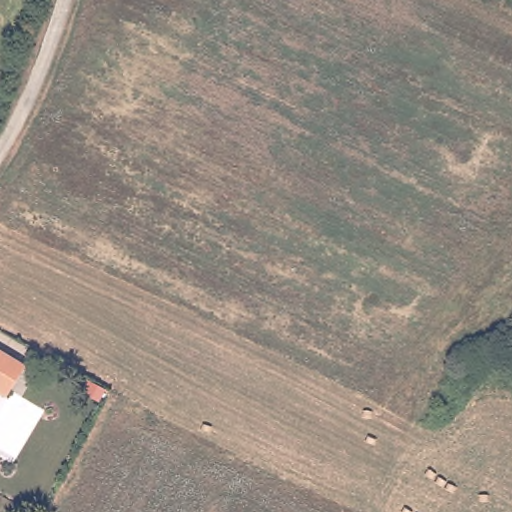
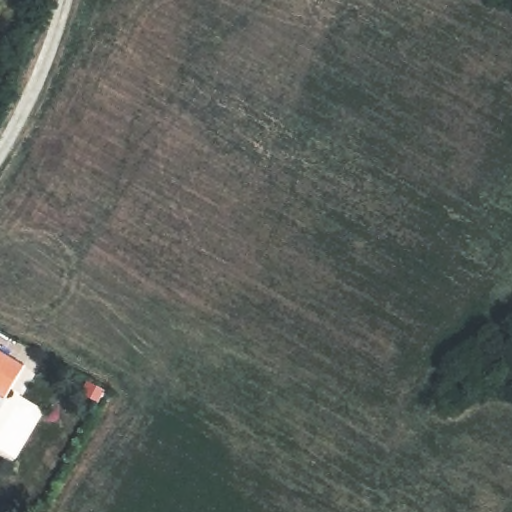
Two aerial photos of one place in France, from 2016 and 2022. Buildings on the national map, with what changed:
unchanged [(0,366),(0,358),(4,360),(0,366)]
unchanged [(0,389),(0,380),(4,383),(0,389)]

